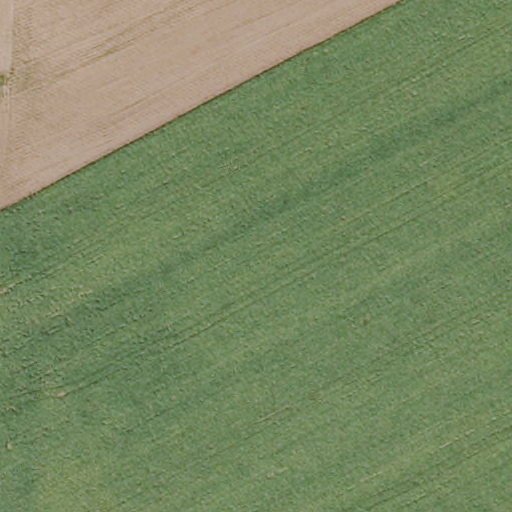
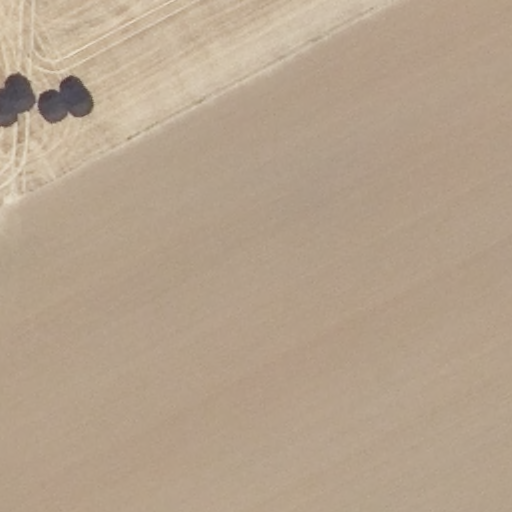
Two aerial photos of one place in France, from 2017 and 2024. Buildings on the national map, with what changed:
[]

